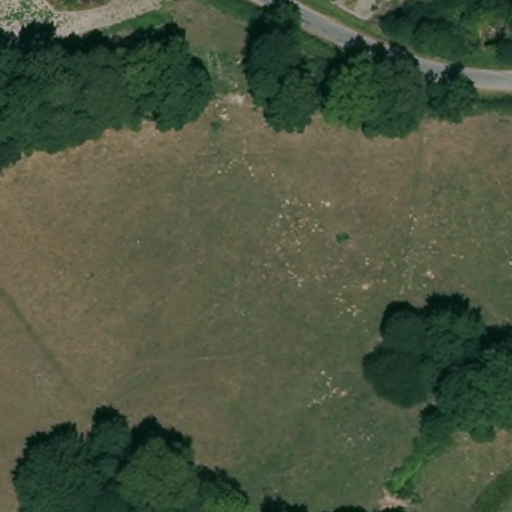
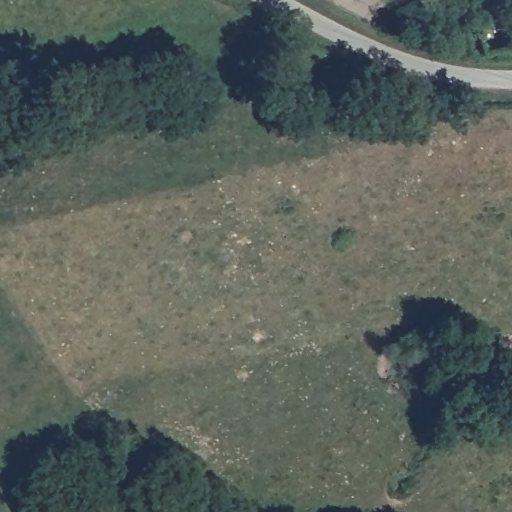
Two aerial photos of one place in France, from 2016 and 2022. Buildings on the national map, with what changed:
unchanged [(511,50),(482,55),(456,55),(456,28),(507,20),(511,50)]

